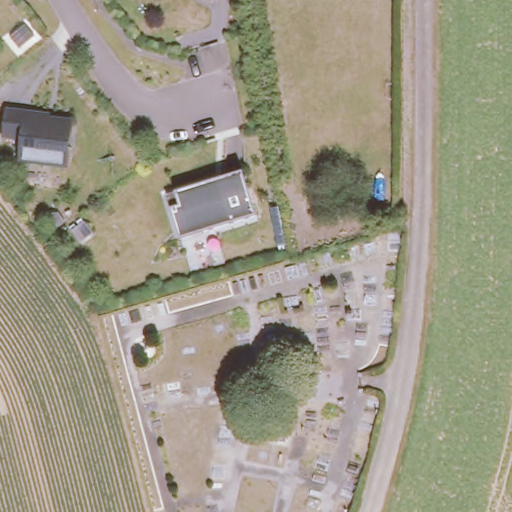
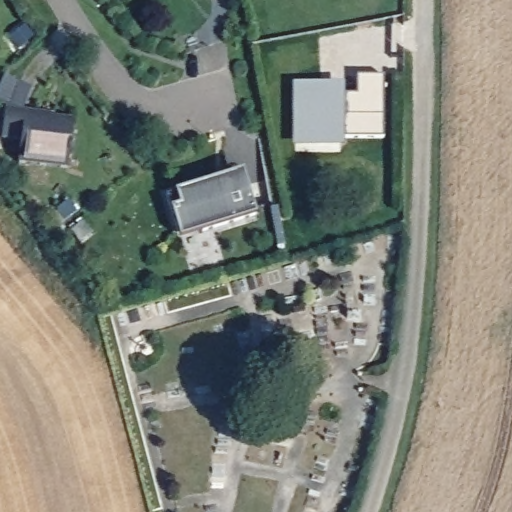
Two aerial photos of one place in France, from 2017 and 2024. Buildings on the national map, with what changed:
new [(342,140),(342,148),(291,147),(291,84),(343,84),(344,95),(356,95),(356,77),(382,77),(383,139),(342,140)]
unchanged [(48,111),(48,116),(73,120),(68,165),(17,160),(21,136),(1,138),(5,108),(48,111)]
unchanged [(169,193),(242,171),(256,214),(180,236),(169,193)]

